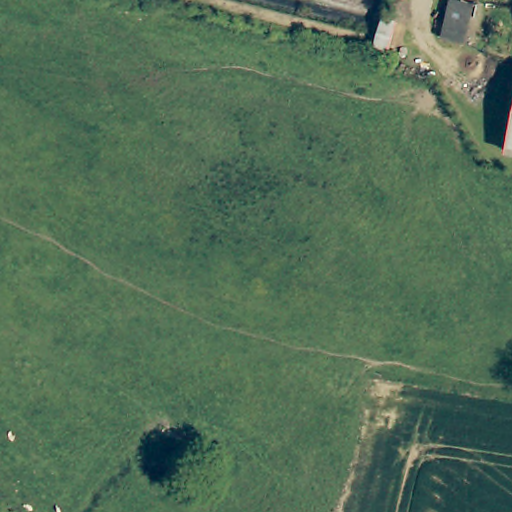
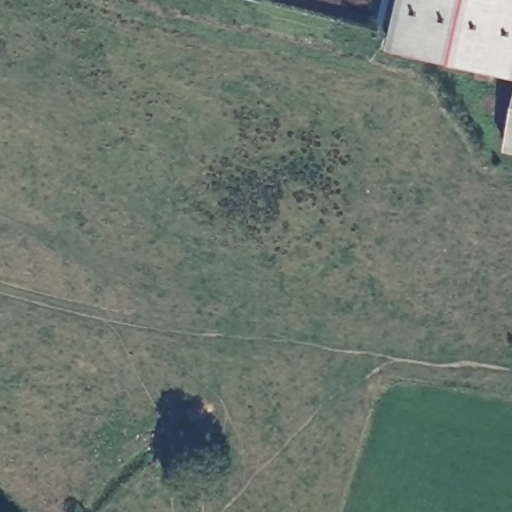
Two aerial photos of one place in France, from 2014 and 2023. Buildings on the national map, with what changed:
new [(403,0),(512,0),(512,77),(391,49),(403,0)]
unchanged [(512,154),(510,154),(512,145),(512,154)]

